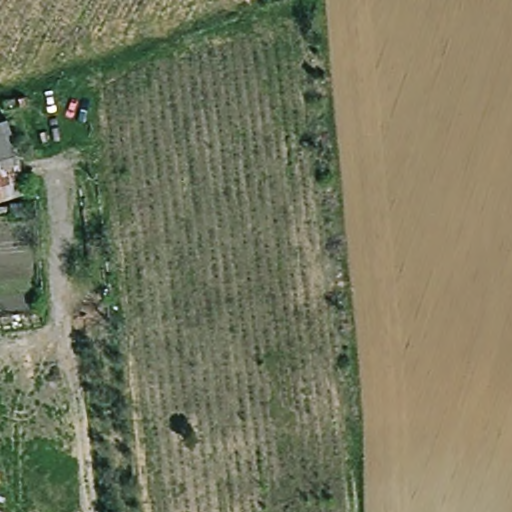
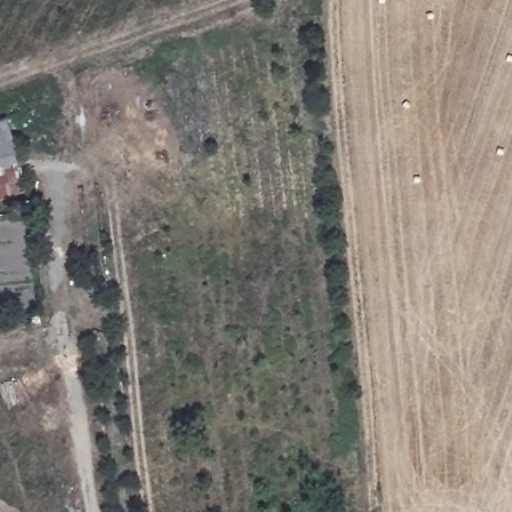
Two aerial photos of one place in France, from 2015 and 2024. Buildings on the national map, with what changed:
unchanged [(0,199),(0,119),(7,117),(28,192),(0,199)]

